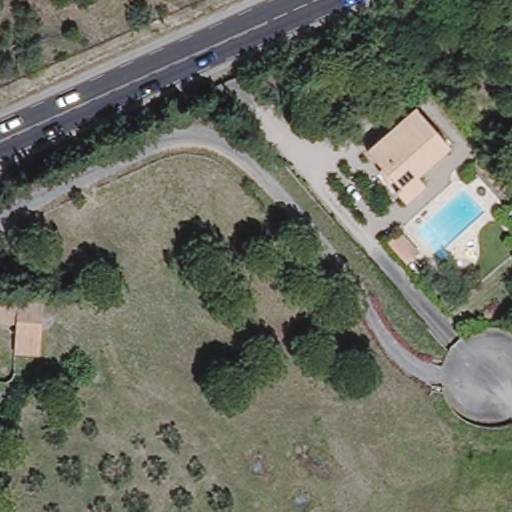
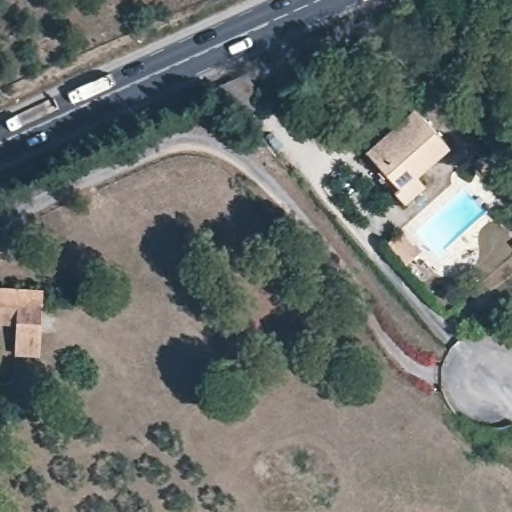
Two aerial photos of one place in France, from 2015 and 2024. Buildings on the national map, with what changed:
unchanged [(425,186),(405,204),(395,192),(400,188),(367,151),(415,109),(448,145),(415,175),(425,186)]
unchanged [(500,189),(481,168),(491,162),(510,181),(500,189)]
unchanged [(41,357),(15,355),(16,326),(0,326),(0,287),(44,289),(41,357)]

